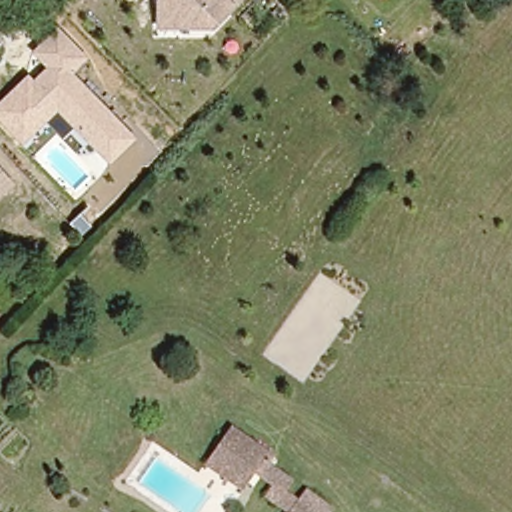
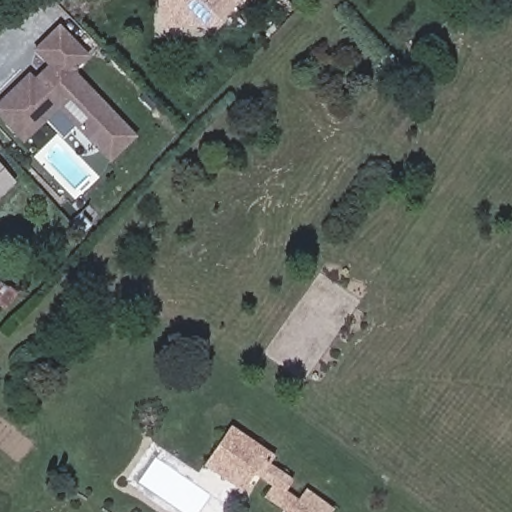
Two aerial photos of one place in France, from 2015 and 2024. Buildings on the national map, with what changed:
unchanged [(157,29),(157,0),(243,0),(216,29),(157,29)]
unchanged [(87,56),(72,71),(136,138),(108,164),(74,128),(64,139),(46,121),(25,143),(0,120),(0,96),(24,73),(31,79),(45,65),(31,51),(58,26),(87,56)]
unchanged [(0,188),(0,174),(7,182),(0,188)]
unchanged [(20,294),(6,313),(0,308),(0,278),(20,294)]
unchanged [(206,462),(217,448),(232,426),(276,456),(270,464),(265,460),(254,476),(244,489),(206,462)]
unchanged [(293,508),(300,512),(290,512),(293,508)]

